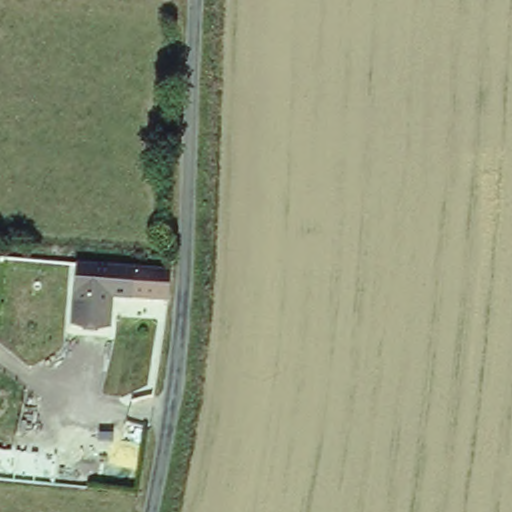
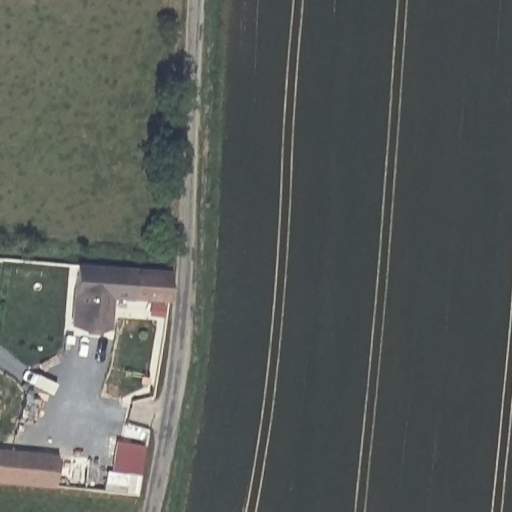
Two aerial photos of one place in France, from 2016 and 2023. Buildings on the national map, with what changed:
unchanged [(161,298),(105,293),(101,327),(65,323),(66,317),(69,265),(149,269),(163,270),(161,298)]
new [(0,482),(0,448),(59,454),(56,487),(0,482)]
new [(107,470),(141,474),(139,495),(104,491),(107,470)]

